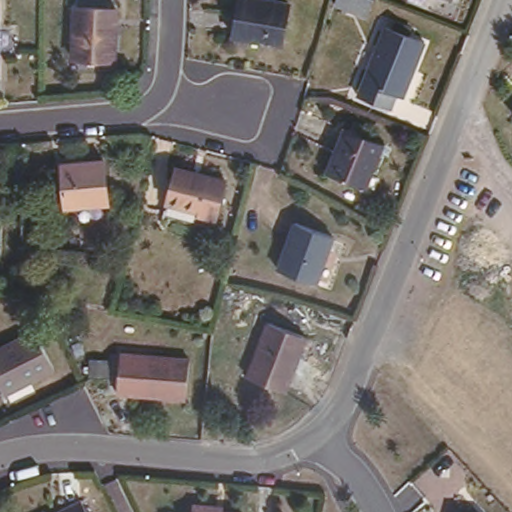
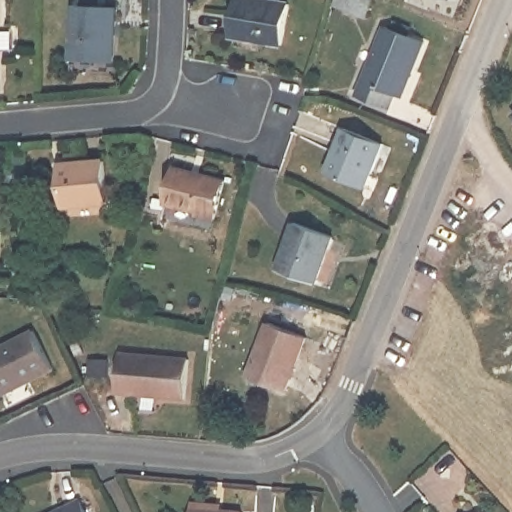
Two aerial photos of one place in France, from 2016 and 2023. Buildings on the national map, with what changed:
unchanged [(241,0),(285,0),(278,41),(235,33),(241,0)]
unchanged [(352,0),(372,8),(365,28),(335,16),(341,0),(352,0)]
unchanged [(74,55),(77,5),(113,7),(110,56),(74,55)]
unchanged [(361,90),(388,25),(395,28),(397,21),(413,28),(411,34),(426,41),(406,91),(397,87),(391,103),(361,90)]
unchanged [(512,109),(512,115),(509,111),(512,109)]
unchanged [(323,173),(341,129),(381,146),(363,189),(323,173)]
unchanged [(59,202),(56,159),(100,157),(101,199),(59,202)]
unchanged [(165,198),(176,161),(225,177),(211,217),(195,212),(195,208),(165,198)]
unchanged [(276,266),(295,221),(333,237),(314,282),(276,266)]
unchanged [(247,373),(266,319),(306,333),(286,387),(247,373)]
unchanged [(2,390),(0,386),(0,341),(27,327),(47,367),(2,390)]
unchanged [(115,388),(120,348),(187,355),(183,394),(115,388)]
unchanged [(81,496),(88,512),(44,512),(81,496)]
unchanged [(190,503),(210,505),(210,510),(228,512),(188,512),(190,503)]

